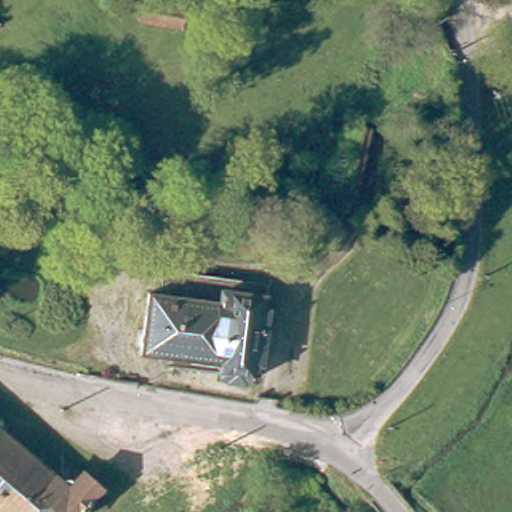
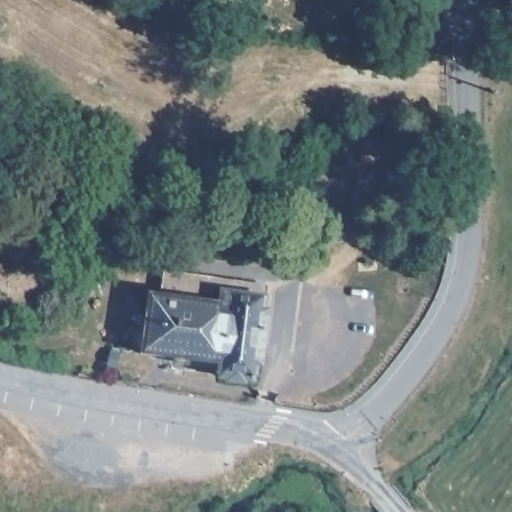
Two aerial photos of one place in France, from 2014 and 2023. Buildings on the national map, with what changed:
unchanged [(179,27),(140,19),(145,0),(184,8),(179,27)]
unchanged [(310,229),(325,148),(338,151),(344,124),(365,127),(350,212),(356,213),(355,224),(354,229),(351,235),(347,240),(342,243),(335,246),(327,244),(307,241),(310,229)]
unchanged [(215,376),(214,368),(167,362),(136,357),(144,297),(157,299),(161,277),(259,290),(256,314),(260,315),(254,367),(250,367),(247,385),(215,381),(215,376)]
demolished [(54,477),(62,477),(65,481),(72,475),(90,490),(70,512),(0,512),(0,436),(50,480),(54,477)]

